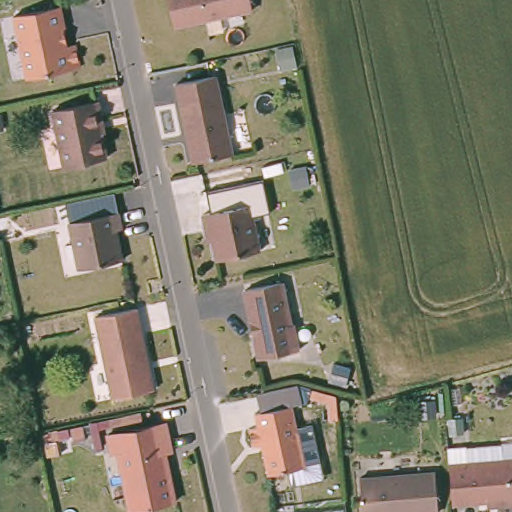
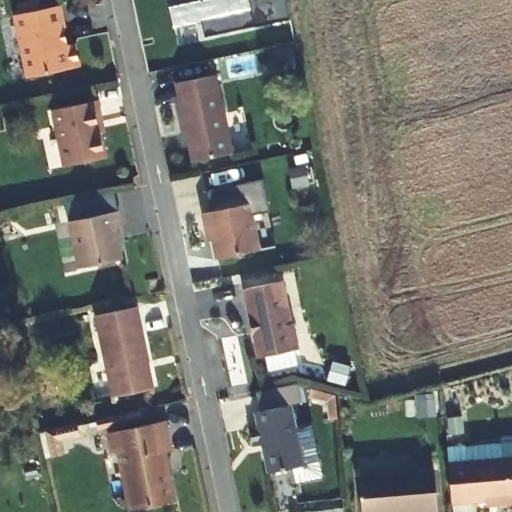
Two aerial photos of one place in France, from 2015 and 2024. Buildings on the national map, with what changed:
unchanged [(255,8),(176,25),(171,0),(253,0),(255,8)]
unchanged [(59,8),(63,28),(60,29),(63,46),(72,45),(77,68),(25,78),(13,17),(59,8)]
unchanged [(225,74),(241,153),(198,161),(183,83),(225,74)]
unchanged [(95,100),(99,117),(95,117),(105,157),(62,165),(50,109),(95,100)]
unchanged [(256,202),(265,251),(224,258),(219,228),(213,230),(210,213),(256,202)]
unchanged [(120,215),(125,234),(117,235),(124,263),(80,272),(71,226),(120,215)]
unchanged [(280,282),(288,324),(291,324),(297,350),(257,358),(252,333),(250,333),(248,323),(250,323),(242,290),(280,282)]
unchanged [(143,308),(160,390),(120,398),(102,317),(143,308)]
unchanged [(315,464),(315,465),(315,466),(315,468),(315,470),(313,472),(312,474),(311,475),(310,477),(307,478),(306,479),(303,479),(287,483),(285,468),(263,472),(258,449),(260,449),(260,443),(248,445),(245,427),(253,425),(250,412),(288,404),(295,441),(310,437),(315,462),(315,463),(315,464)]
unchanged [(173,422),(180,451),(172,453),(182,502),(138,511),(126,452),(119,453),(116,432),(173,422)]
unchanged [(512,457),(512,504),(502,504),(502,498),(457,501),(455,461),(512,457)]
unchanged [(437,510),(411,512),(362,512),(360,476),(435,470),(437,510)]

